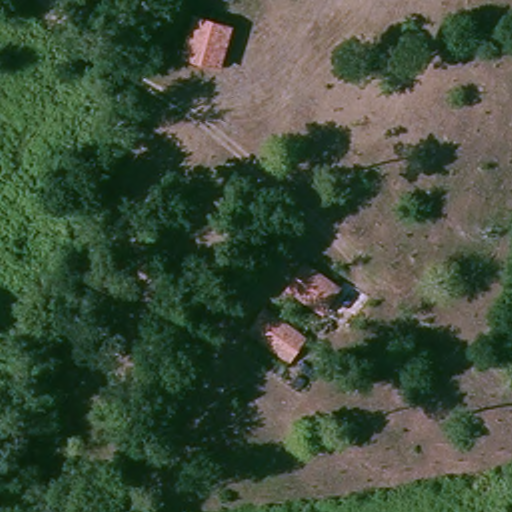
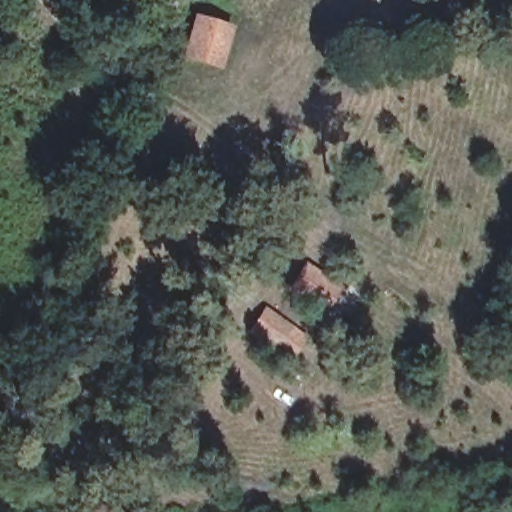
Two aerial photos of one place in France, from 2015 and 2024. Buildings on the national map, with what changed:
unchanged [(207,22),(242,31),(240,47),(235,70),(179,57),(187,17),(207,22)]
unchanged [(337,287),(323,308),(292,286),(307,264),(337,287)]
unchanged [(308,337),(291,363),(255,332),(271,308),(308,337)]

